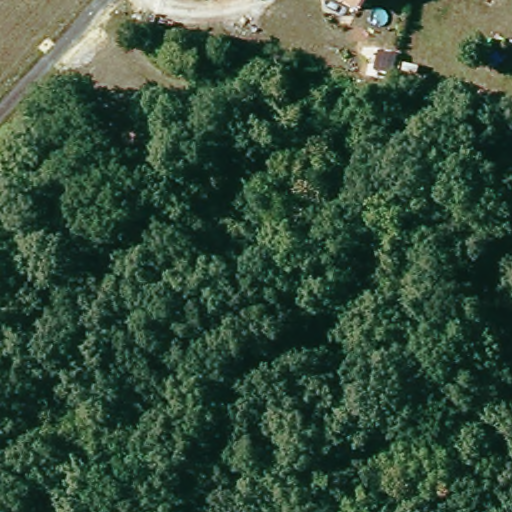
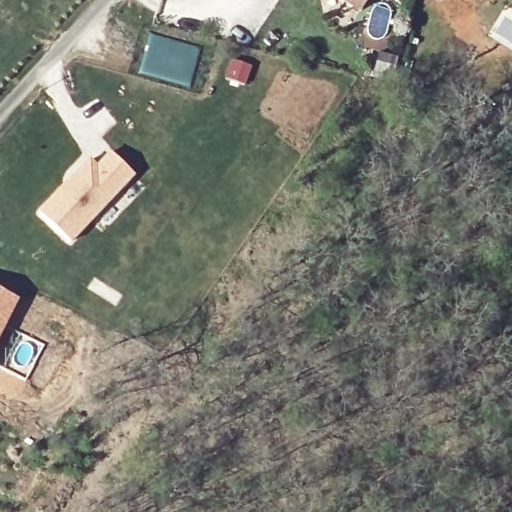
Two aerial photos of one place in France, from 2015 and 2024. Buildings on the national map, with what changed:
unchanged [(365,8),(351,0),(370,0),(365,8)]
new [(135,175),(73,242),(39,213),(90,158),(97,165),(111,151),(135,175)]
new [(17,300),(0,332),(0,292),(17,300)]

